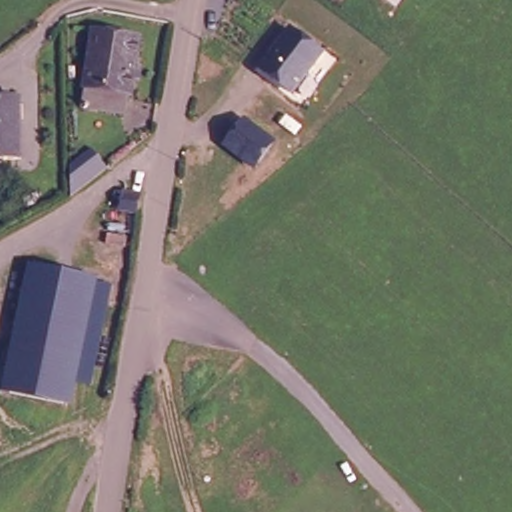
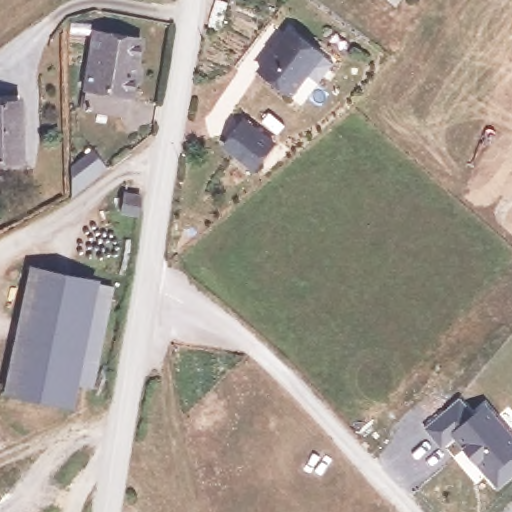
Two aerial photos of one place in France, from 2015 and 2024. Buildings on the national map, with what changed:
unchanged [(284,26),(316,51),(285,90),(253,66),(284,26)]
unchanged [(142,43),(132,119),(88,113),(91,93),(87,93),(93,34),(142,43)]
unchanged [(15,100),(19,160),(0,161),(0,101),(15,100)]
unchanged [(277,140),(255,171),(220,146),(243,115),(277,140)]
unchanged [(104,166),(67,195),(68,183),(66,165),(88,148),(98,160),(104,166)]
unchanged [(120,207),(121,189),(137,190),(135,209),(120,207)]
unchanged [(38,274),(95,289),(67,412),(8,398),(38,274)]
new [(459,396),(474,410),(450,434),(455,439),(443,449),(423,427),(459,396)]
new [(486,399),(512,430),(512,478),(499,489),(462,448),(455,439),(450,434),(474,410),(486,399)]

